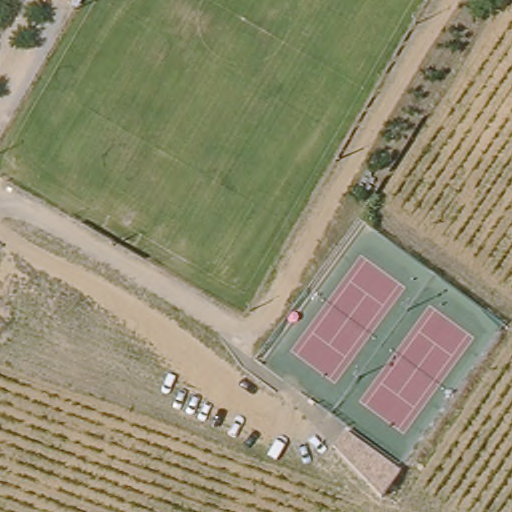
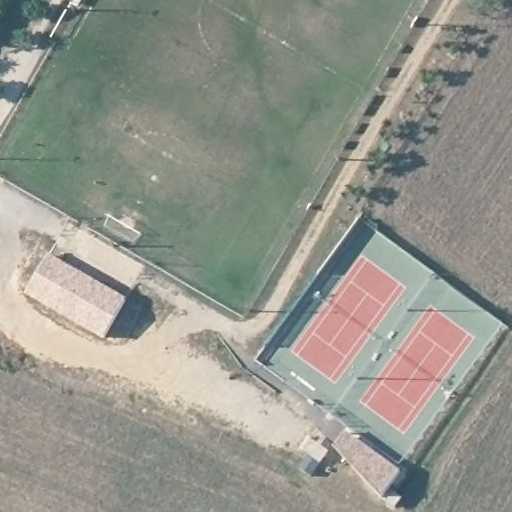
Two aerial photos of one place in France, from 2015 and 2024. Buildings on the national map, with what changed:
new [(50,255),(129,298),(108,335),(30,292),(50,255)]
new [(349,431),(404,470),(385,495),(339,446),(349,431)]

